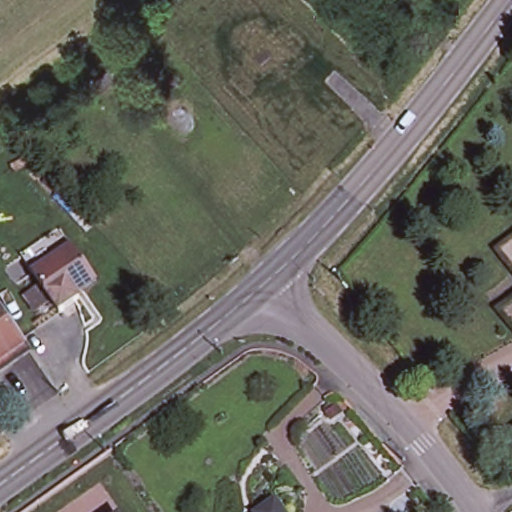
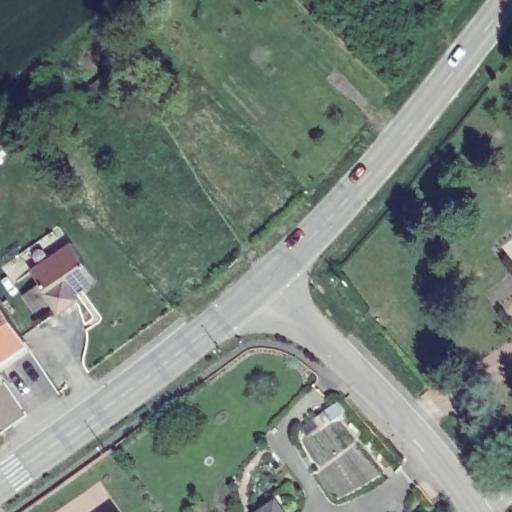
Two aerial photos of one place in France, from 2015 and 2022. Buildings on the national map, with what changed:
unchanged [(72,288),(76,295),(56,308),(29,267),(68,241),(88,271),(91,276),(72,288)]
unchanged [(0,362),(0,313),(18,340),(23,347),(21,348),(0,362)]
unchanged [(273,512),(237,512),(243,507),(239,501),(256,488),(273,512)]

